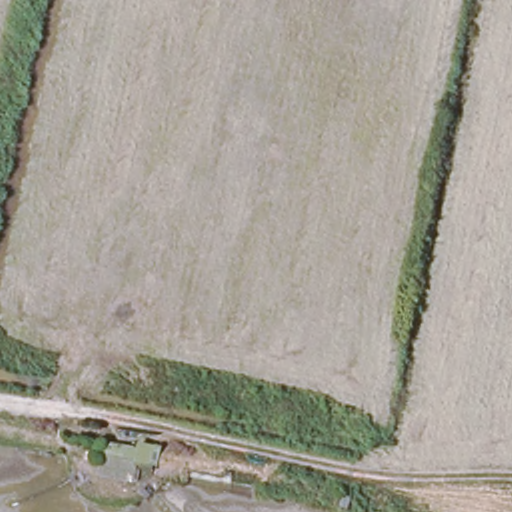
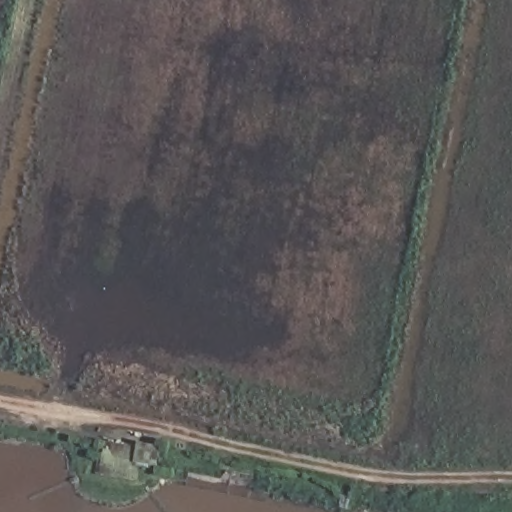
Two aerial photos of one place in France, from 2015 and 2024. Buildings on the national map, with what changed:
unchanged [(104,474),(109,440),(141,445),(139,478),(104,474)]

